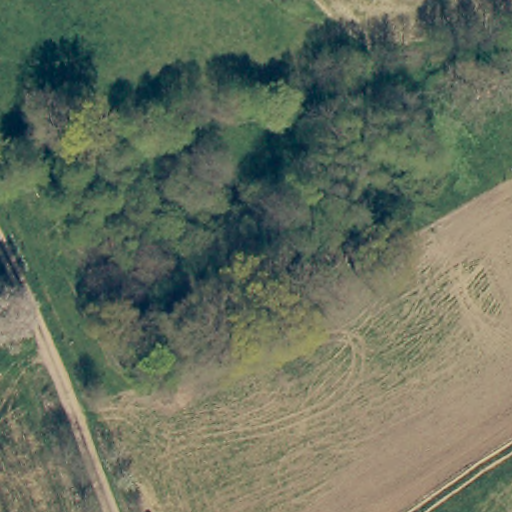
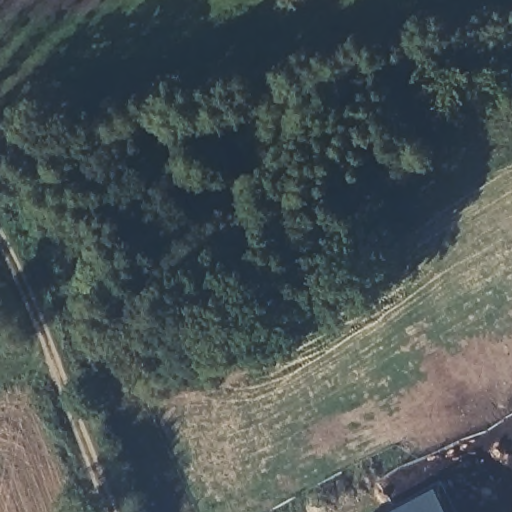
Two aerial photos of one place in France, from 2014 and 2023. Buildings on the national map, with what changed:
new [(397,512),(439,490),(451,512),(397,512)]

